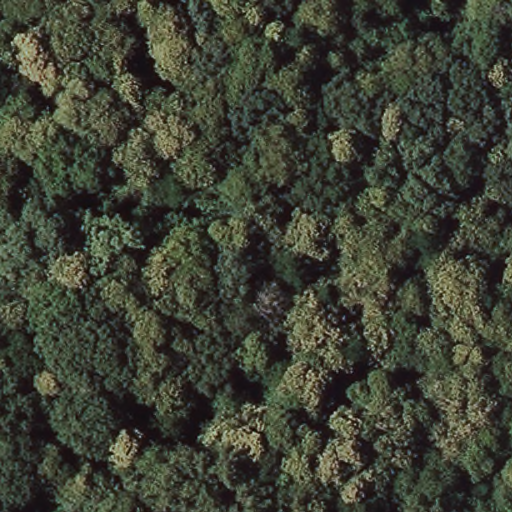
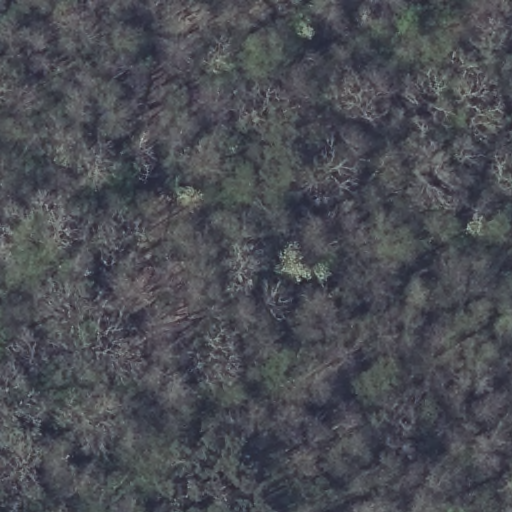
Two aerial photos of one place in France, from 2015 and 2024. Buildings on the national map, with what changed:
[]

